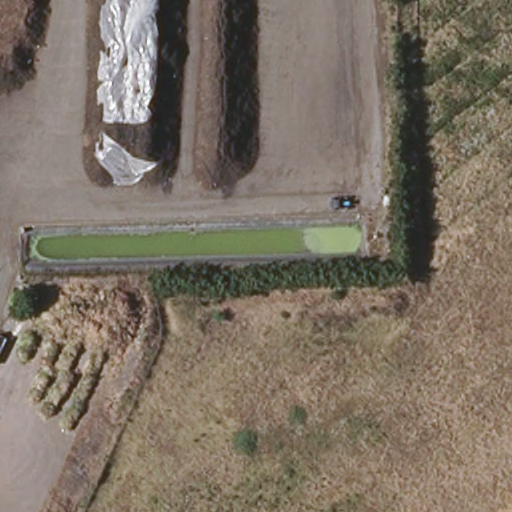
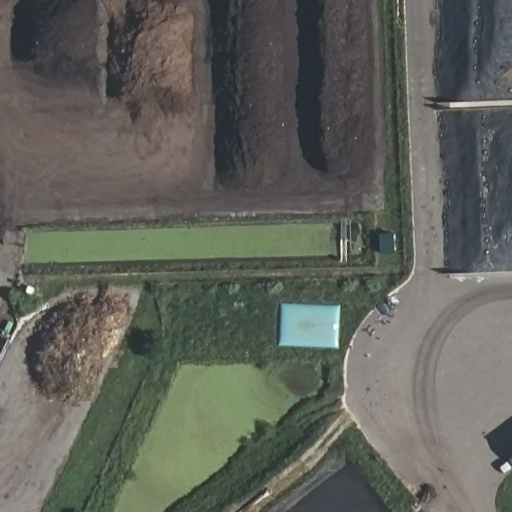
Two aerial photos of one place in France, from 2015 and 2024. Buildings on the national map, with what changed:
[]

